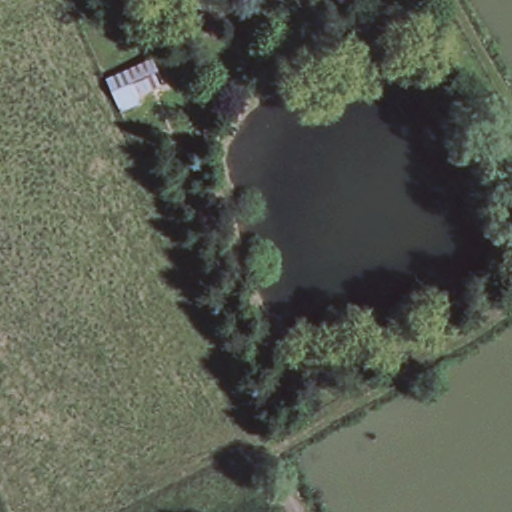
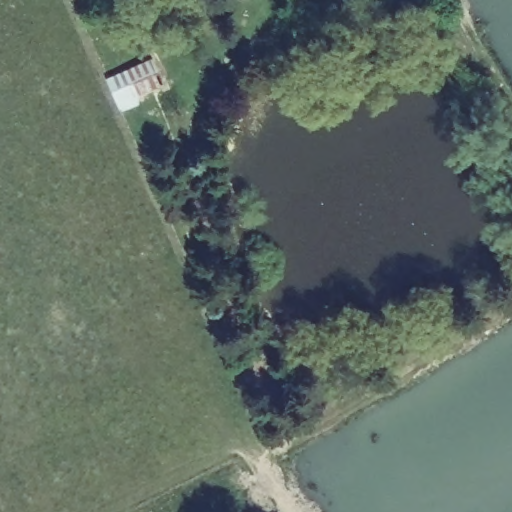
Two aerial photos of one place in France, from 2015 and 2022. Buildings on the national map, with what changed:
unchanged [(166,85),(140,94),(143,103),(122,111),(107,76),(150,54),(166,85)]

